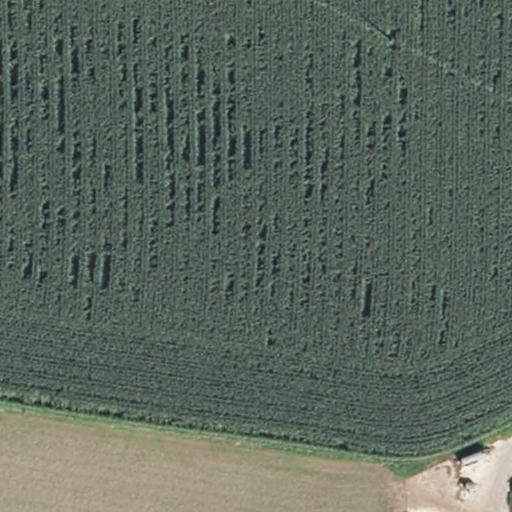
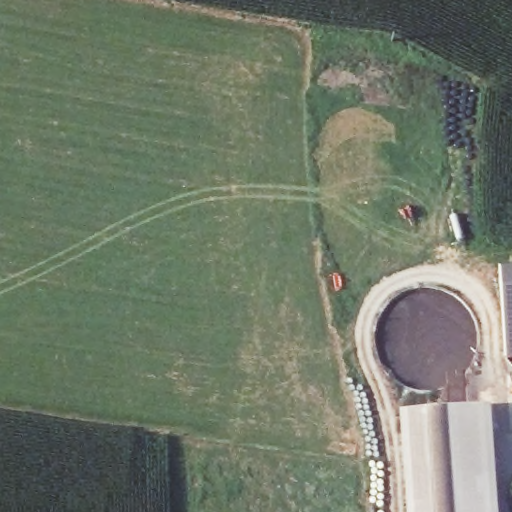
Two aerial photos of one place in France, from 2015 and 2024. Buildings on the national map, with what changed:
new [(512,336),(504,337),(500,265),(512,264),(512,336)]
new [(488,404),(495,512),(478,512),(470,405),(488,404)]
new [(478,512),(407,512),(401,409),(470,405),(478,512)]

